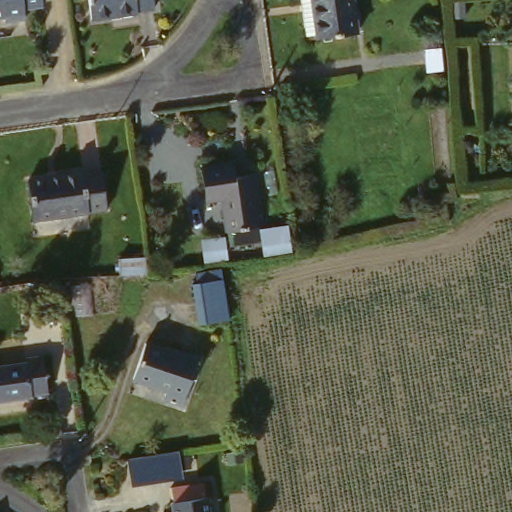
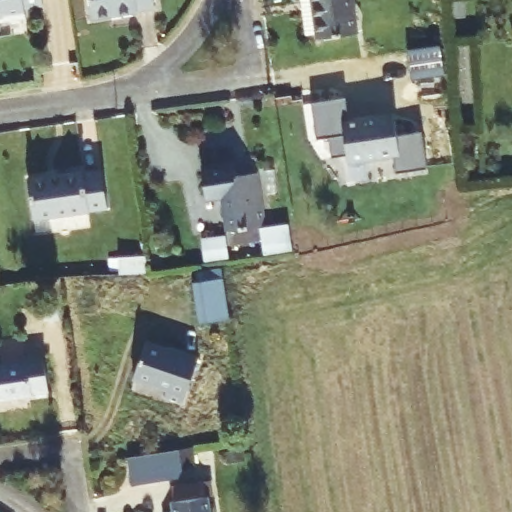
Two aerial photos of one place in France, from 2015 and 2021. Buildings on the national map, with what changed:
unchanged [(20,25),(21,35),(1,38),(0,33),(0,0),(37,0),(39,23),(20,25)]
unchanged [(126,24),(83,28),(81,0),(141,0),(142,16),(124,18),(126,24)]
unchanged [(300,0),(345,0),(350,42),(306,48),(300,0)]
new [(344,99),(347,118),(391,111),(396,135),(421,131),(427,168),(395,173),(392,157),(347,164),(346,155),(331,157),(328,136),(316,138),(311,104),(344,99)]
unchanged [(220,235),(214,203),(199,207),(194,166),(228,161),(232,180),(249,178),(254,229),(220,235)]
unchanged [(25,228),(19,187),(76,178),(76,183),(90,181),(95,219),(25,228)]
unchanged [(105,281),(104,268),(134,264),(135,282),(105,281)]
unchanged [(226,279),(229,321),(198,324),(194,283),(226,279)]
unchanged [(172,361),(173,359),(191,366),(173,413),(154,406),(157,398),(124,385),(138,348),(172,361)]
unchanged [(25,407),(0,410),(0,374),(19,372),(19,367),(38,365),(42,402),(24,403),(25,407)]
new [(177,458),(179,479),(179,481),(125,486),(123,463),(156,460),(177,458)]
unchanged [(161,508),(166,507),(164,491),(203,487),(204,501),(200,502),(201,512),(162,512),(161,508)]

